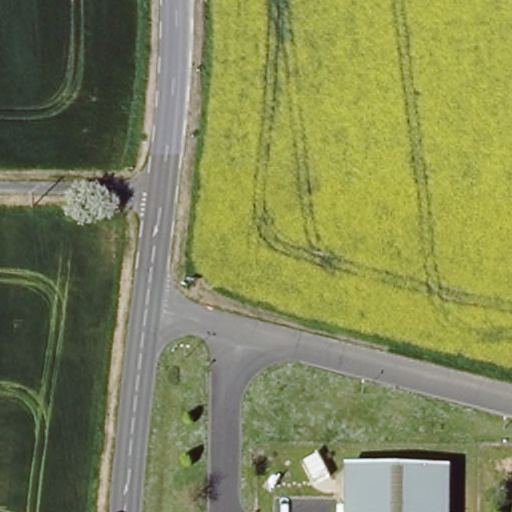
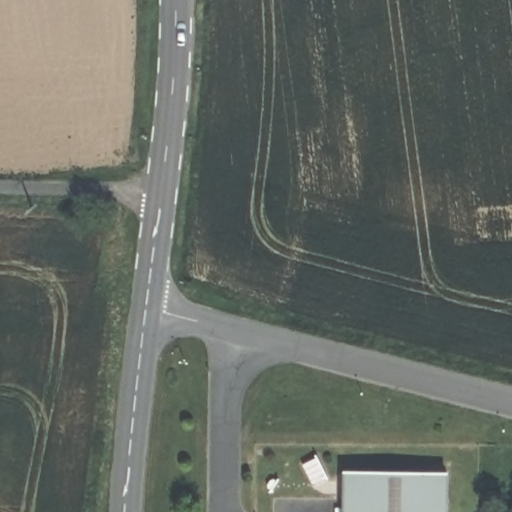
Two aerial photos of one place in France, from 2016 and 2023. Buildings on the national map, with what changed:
unchanged [(451,473),(449,512),(348,512),(350,473),(451,473)]

